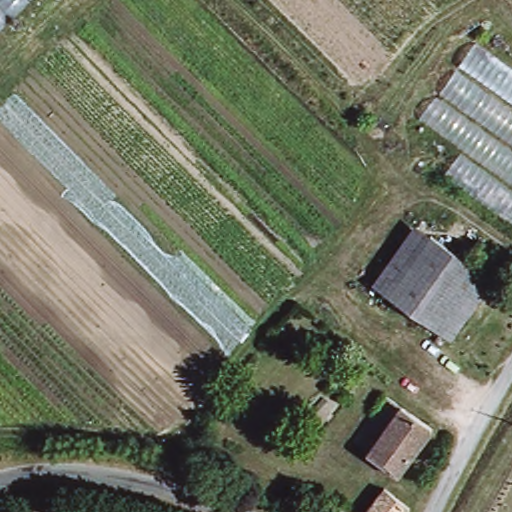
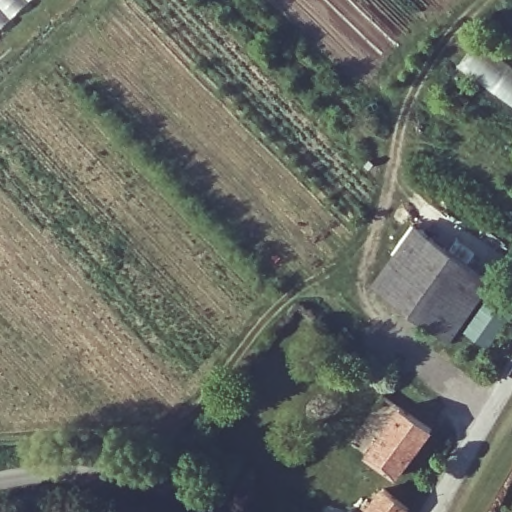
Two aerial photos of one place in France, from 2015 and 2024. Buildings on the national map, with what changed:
unchanged [(0,0),(32,0),(0,31),(0,0)]
demolished [(478,45),(512,68),(512,223),(444,177),(464,147),(421,117),(478,45)]
unchanged [(490,273),(448,334),(370,281),(383,262),(370,252),(385,230),(399,239),(412,221),(490,273)]
unchanged [(400,398),(433,420),(400,469),(367,447),(400,398)]
unchanged [(375,492),(406,511),(406,512),(363,512),(375,492)]

